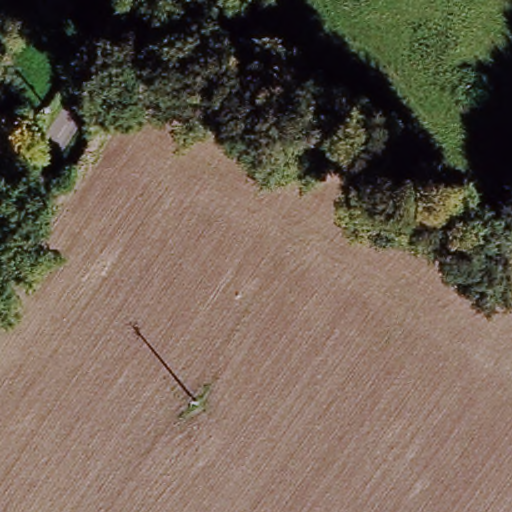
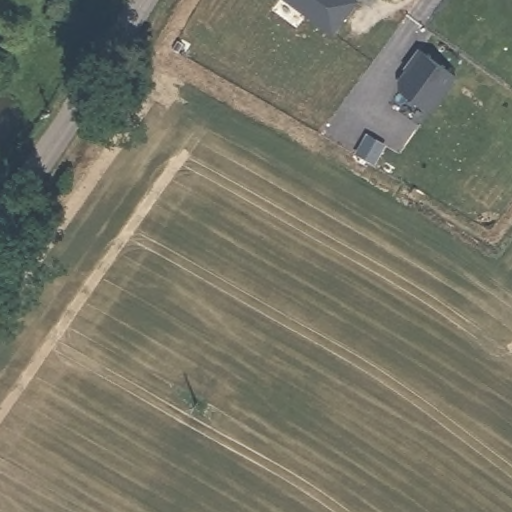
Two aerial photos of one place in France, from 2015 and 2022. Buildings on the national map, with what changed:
new [(358,2),(334,35),(288,0),(355,0),(358,2)]
new [(459,75),(432,112),(399,88),(397,78),(417,50),(459,75)]

